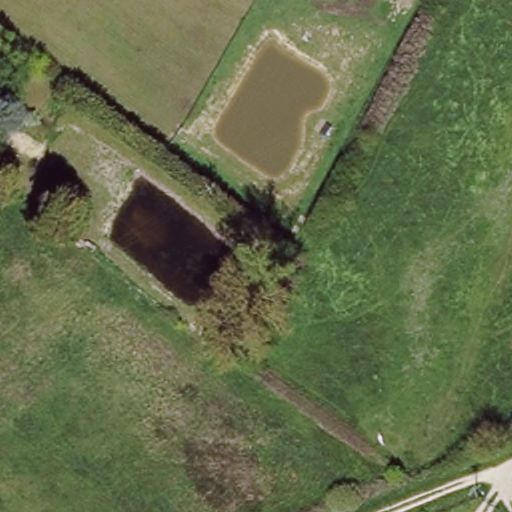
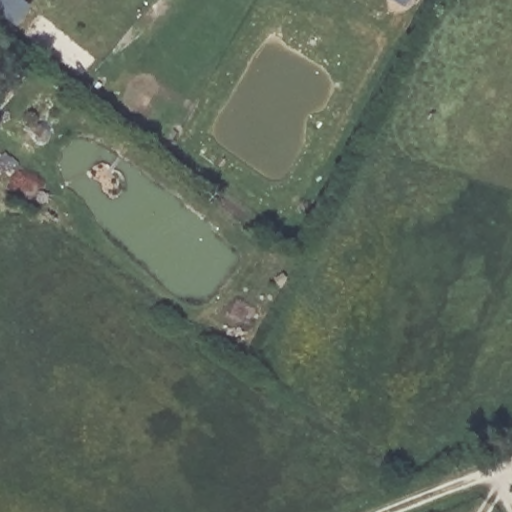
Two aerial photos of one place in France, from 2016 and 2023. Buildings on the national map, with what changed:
new [(17,24),(0,11),(0,0),(23,0),(30,5),(17,24)]

